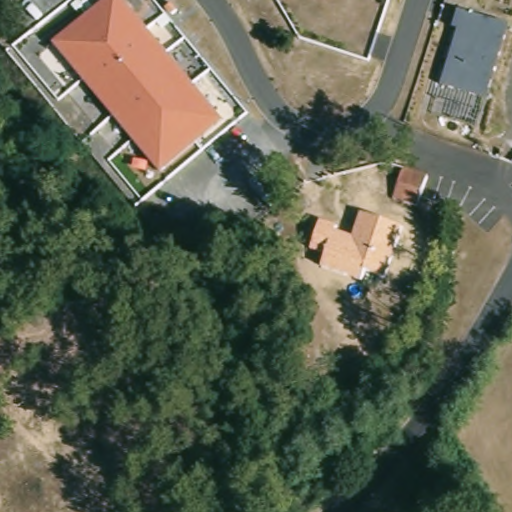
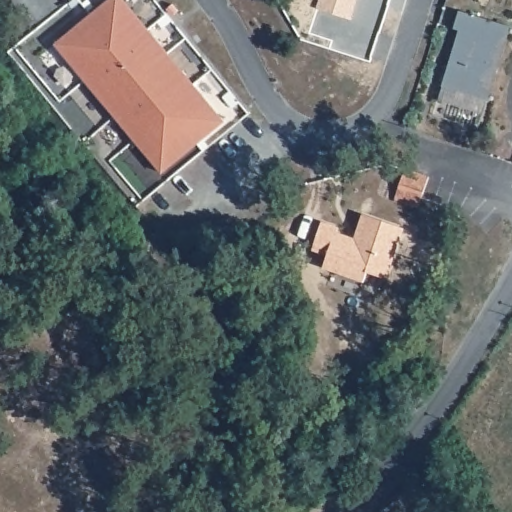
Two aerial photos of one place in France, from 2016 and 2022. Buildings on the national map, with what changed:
unchanged [(164,172),(59,45),(113,0),(125,0),(226,122),(164,172)]
unchanged [(510,25),(488,98),(443,86),(460,29),(453,27),(458,10),(510,25)]
unchanged [(388,204),(398,173),(422,181),(415,202),(412,213),(388,204)]
unchanged [(405,225),(386,277),(368,270),(362,283),(321,269),(327,257),(310,251),(322,219),(338,226),(337,231),(354,236),(361,214),(405,225)]

